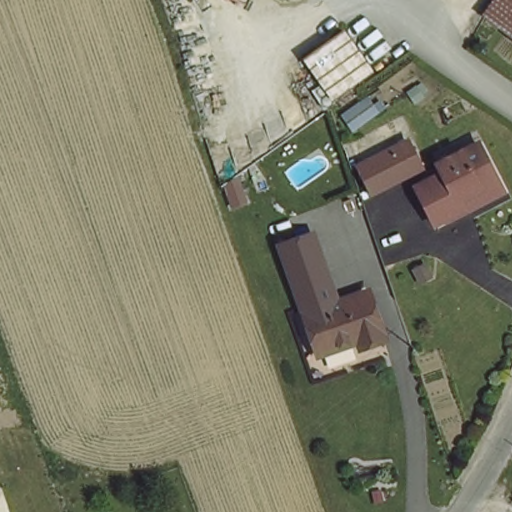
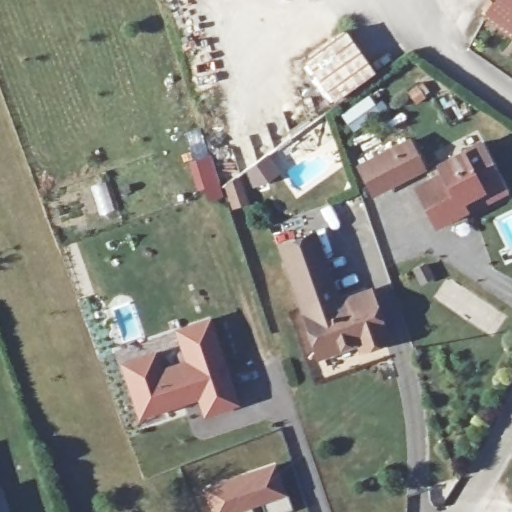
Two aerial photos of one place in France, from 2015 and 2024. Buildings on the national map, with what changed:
unchanged [(482,34),(503,0),(512,0),(512,50),(482,34)]
unchanged [(333,97),(302,55),(348,24),(373,67),(333,97)]
new [(197,191),(187,162),(194,159),(185,134),(216,124),(223,147),(211,151),(222,183),(240,177),(250,204),(230,210),(225,194),(208,200),(204,189),(197,191)]
unchanged [(415,172),(370,193),(355,157),(412,136),(425,169),(415,172)]
unchanged [(425,197),(417,177),(446,166),(442,155),(485,138),(502,179),(507,192),(462,208),(443,216),(435,219),(425,197)]
unchanged [(272,233),(312,223),(340,297),(300,309),(272,233)]
unchanged [(392,335),(368,344),(365,337),(327,352),(312,314),(374,291),(392,335)]
new [(156,350),(162,366),(184,359),(173,329),(210,317),(240,405),(203,417),(197,400),(138,418),(120,362),(156,350)]
new [(266,512),(262,502),(250,507),(252,512),(211,512),(202,487),(275,462),(292,509),(282,512),(266,512)]

